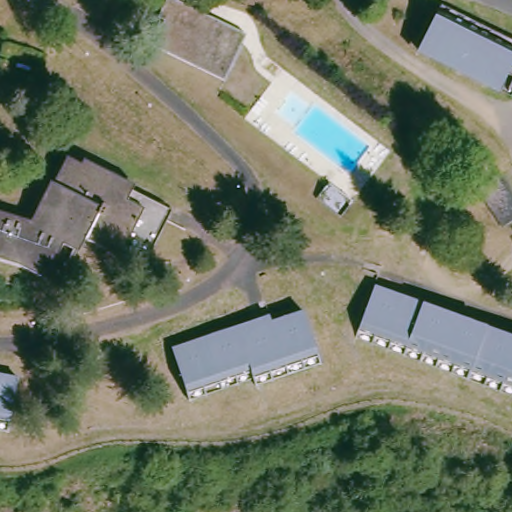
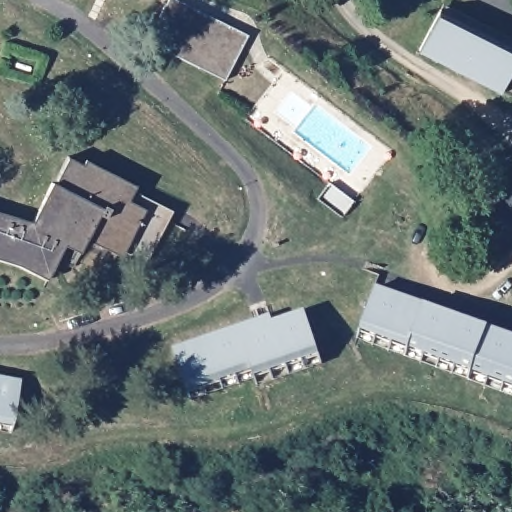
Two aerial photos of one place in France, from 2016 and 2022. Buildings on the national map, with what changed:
unchanged [(228,83),(155,45),(166,21),(161,18),(168,0),(178,0),(250,35),(228,83)]
unchanged [(421,59),(425,53),(444,17),(474,33),(471,40),(494,53),(498,45),(512,53),(512,88),(504,103),(442,69),(421,59)]
unchanged [(176,211),(149,265),(77,231),(50,279),(24,266),(0,259),(0,210),(36,223),(54,185),(60,183),(72,160),(152,199),(176,211)]
unchanged [(511,177),(512,179),(512,225),(510,227),(487,188),(509,175),(511,177)]
unchanged [(512,336),(512,393),(360,333),(379,285),(512,336)]
unchanged [(322,363),(261,385),(257,378),(195,400),(177,351),(255,325),(259,332),(306,315),(322,363)]
unchanged [(11,437),(0,435),(0,380),(19,383),(11,437)]

